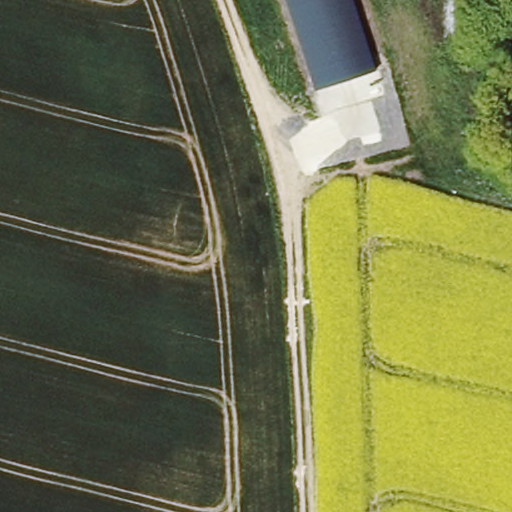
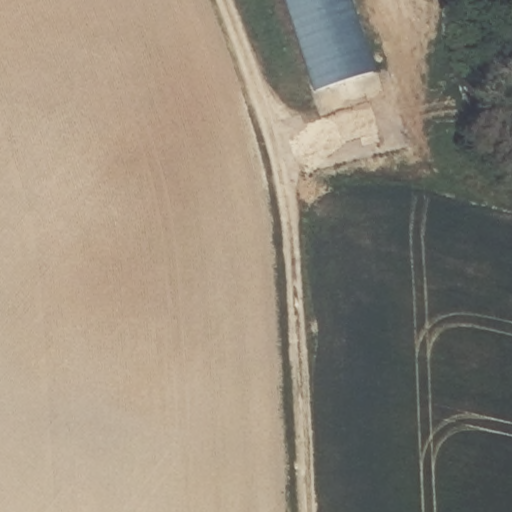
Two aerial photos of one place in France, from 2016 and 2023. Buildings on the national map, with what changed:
unchanged [(278,0),(346,0),(370,70),(309,94),(278,0)]

